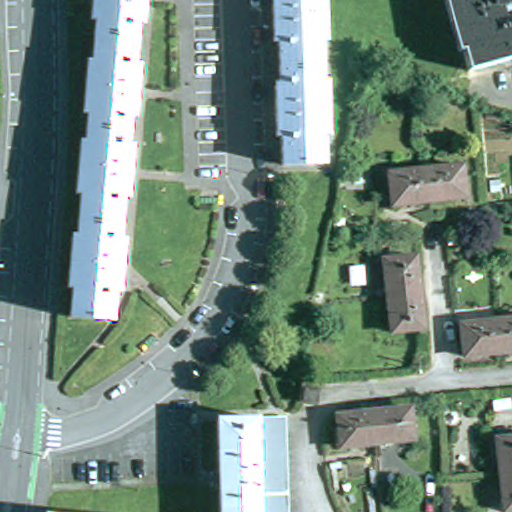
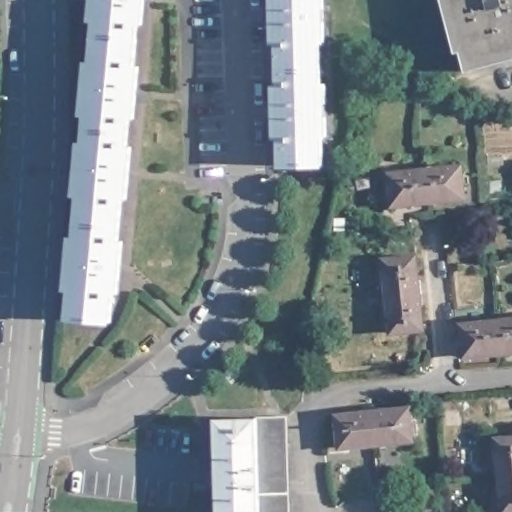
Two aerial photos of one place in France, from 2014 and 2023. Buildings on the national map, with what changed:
unchanged [(142,28),(137,28),(132,72),(138,73),(134,122),(129,123),(127,151),(131,152),(127,204),(122,203),(120,246),(124,247),(119,297),(115,297),(112,325),(72,321),(75,293),(70,292),(71,275),(77,276),(78,261),(72,260),(75,244),(80,243),(82,200),(77,200),(79,182),(84,182),(85,166),(80,166),(82,148),(87,147),(89,118),(85,118),(85,102),(90,101),(92,86),(87,86),(88,68),(93,68),(96,24),(92,24),(93,0),(144,0),(142,28)]
unchanged [(284,90),(282,46),(279,46),(278,35),(277,10),(277,3),(277,0),(326,0),(327,11),(322,10),(322,26),(327,26),(328,44),(324,44),(324,88),(329,88),(330,106),(325,106),(325,121),(330,121),(331,137),(327,138),(327,167),(287,168),(287,140),(282,140),(282,135),(281,122),(280,91),(284,90)]
unchanged [(472,68),(453,0),(512,0),(512,58),(472,68)]
unchanged [(394,178),(466,170),(470,202),(399,210),(394,178)]
unchanged [(499,181),(508,180),(510,191),(500,193),(499,181)]
unchanged [(386,265),(419,262),(427,333),(395,337),(386,265)]
unchanged [(469,362),(465,329),(512,323),(512,358),(469,362)]
unchanged [(300,383),(315,384),(312,400),(299,398),(300,383)]
unchanged [(416,411),(419,442),(346,450),(342,419),(416,411)]
unchanged [(285,512),(256,512),(252,423),(279,421),(280,421),(285,512)]
unchanged [(252,423),(256,512),(219,512),(214,424),(252,423)]
unchanged [(501,440),(512,438),(512,511),(510,512),(501,440)]

